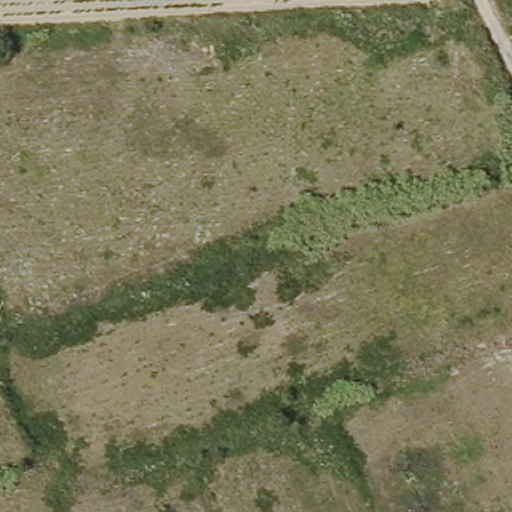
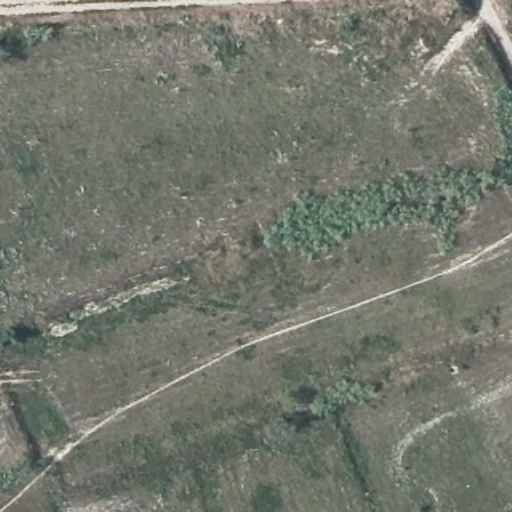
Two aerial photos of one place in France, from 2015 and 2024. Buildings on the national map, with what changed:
[]

